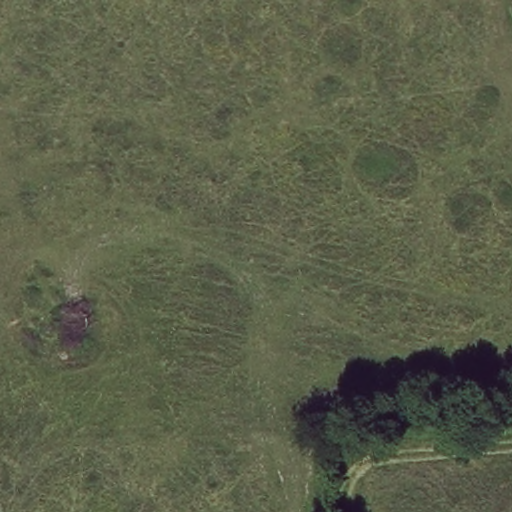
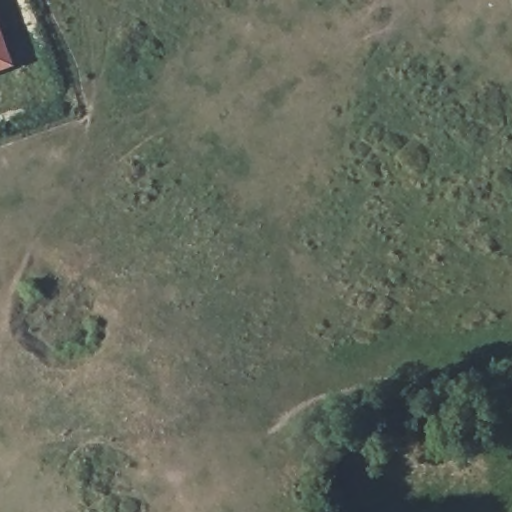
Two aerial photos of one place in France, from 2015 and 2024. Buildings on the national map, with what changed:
new [(15,65),(0,71),(0,28),(15,65)]

